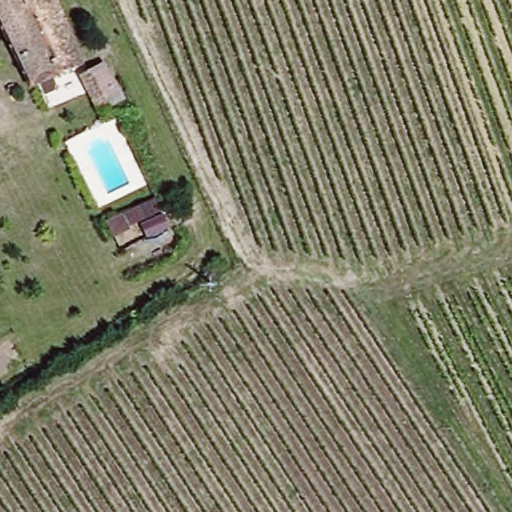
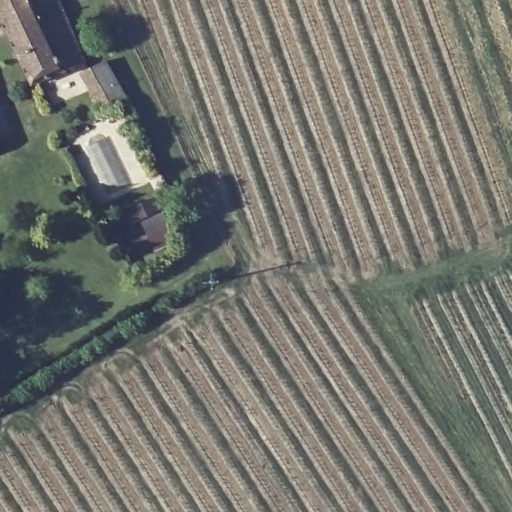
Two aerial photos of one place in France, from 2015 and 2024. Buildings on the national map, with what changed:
unchanged [(21,84),(0,39),(0,0),(52,0),(77,60),(21,84)]
unchanged [(94,62),(112,101),(106,101),(114,119),(100,125),(78,70),(94,62)]

